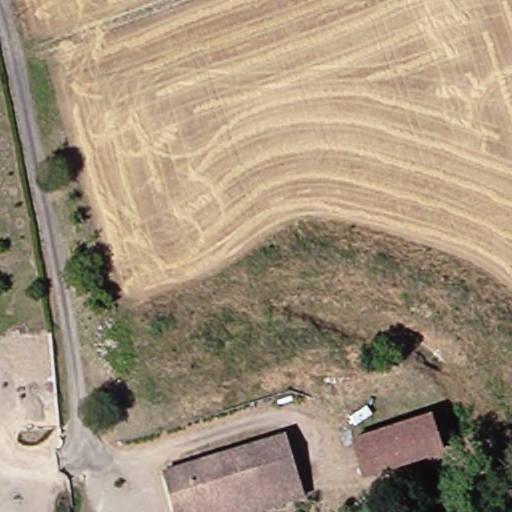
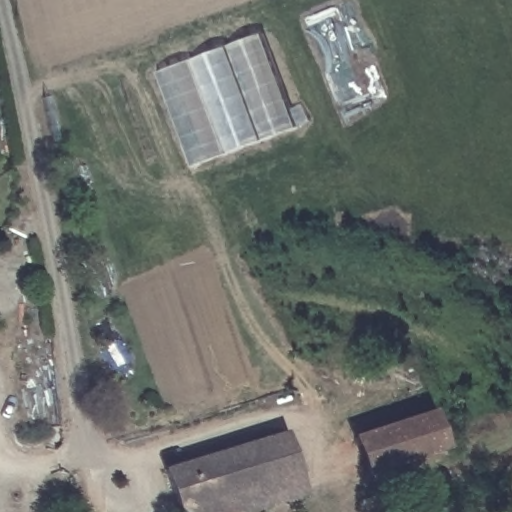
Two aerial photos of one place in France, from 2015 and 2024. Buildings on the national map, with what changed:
new [(298,126),(192,166),(158,73),(262,33),(298,126)]
unchanged [(58,333),(65,431),(22,434),(15,336),(58,333)]
unchanged [(433,411),(445,445),(370,471),(357,438),(433,411)]
unchanged [(290,431),(305,475),(270,485),(257,442),(290,431)]
unchanged [(257,442),(270,485),(195,512),(186,512),(169,469),(255,438),(257,442)]
unchanged [(270,485),(305,475),(311,495),(262,512),(195,512),(270,485)]

